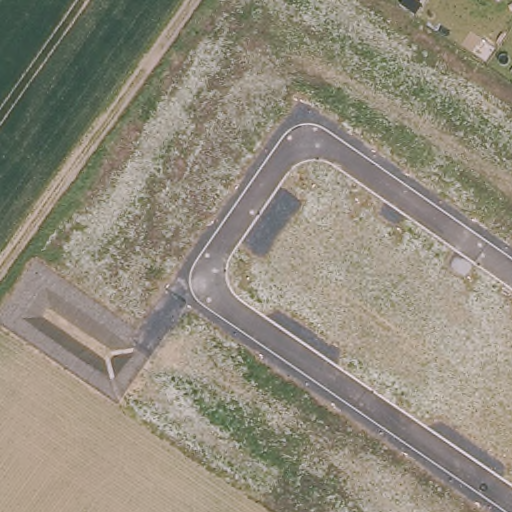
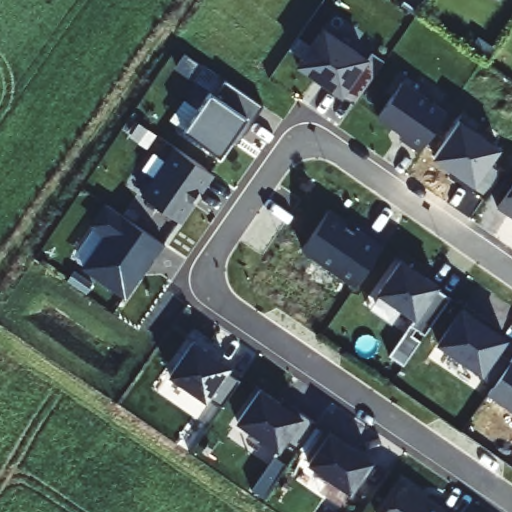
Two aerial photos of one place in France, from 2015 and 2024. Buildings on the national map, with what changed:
new [(341,96),(326,86),(327,85),(316,77),(315,79),(296,66),(323,29),(366,60),(341,96)]
new [(236,144),(231,140),(219,156),(186,130),(211,95),(214,97),(224,81),(261,106),(236,144)]
new [(444,113),(419,149),(402,139),(404,134),(379,116),(402,84),(444,113)]
new [(474,185),(433,156),(459,119),(502,147),(491,163),(501,171),(484,195),(474,185)]
new [(143,193),(137,189),(145,177),(151,181),(154,175),(149,172),(156,162),(163,166),(171,152),(211,177),(179,227),(156,215),(158,206),(141,197),(143,193)]
new [(497,206),(512,184),(512,217),(497,206)]
new [(164,245),(154,259),(153,257),(125,296),(84,268),(106,235),(93,225),(106,205),(164,245)]
new [(301,249),(329,207),(382,242),(354,285),(301,249)]
new [(399,257),(439,284),(449,296),(402,362),(389,353),(415,320),(376,293),(399,257)]
new [(437,342),(462,305),(509,338),(483,375),(437,342)]
new [(189,343),(226,369),(223,374),(233,381),(217,406),(207,400),(203,407),(162,380),(189,343)]
new [(488,393),(512,358),(512,410),(488,393)]
new [(259,390),(280,405),(284,400),(315,422),(296,449),(282,439),(276,447),(238,421),(259,390)]
new [(351,493),(309,464),(330,433),(372,462),(351,493)]
new [(446,511),(445,512),(383,512),(404,482),(446,511)]

